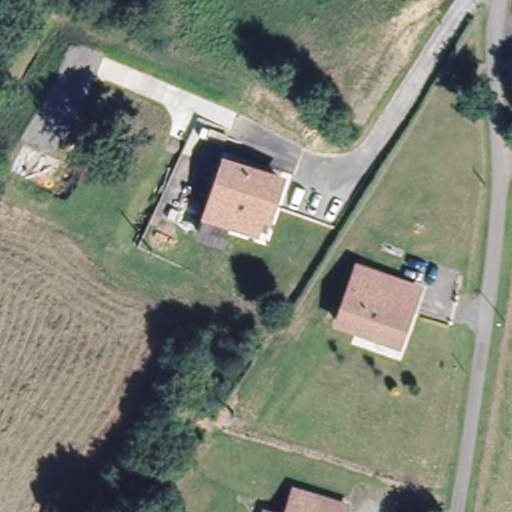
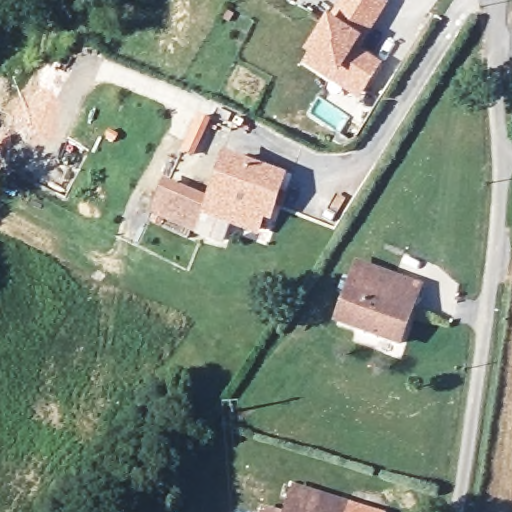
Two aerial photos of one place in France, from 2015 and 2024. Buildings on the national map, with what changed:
new [(311,62),(316,54),(313,51),(322,37),(331,23),(335,24),(350,0),(382,0),(388,4),(370,32),(358,51),(369,58),(381,65),(379,68),(368,86),(362,94),(336,78),(311,62)]
unchanged [(207,207),(223,156),(277,174),(264,213),(257,210),(252,227),(229,219),(224,218),(219,234),(200,228),(207,207)]
new [(158,188),(207,207),(200,228),(219,234),(224,218),(229,219),(221,246),(195,238),(197,233),(148,215),(158,188)]
unchanged [(342,314),(361,259),(398,272),(423,280),(415,303),(404,335),(342,314)]
unchanged [(297,483),(325,494),(350,504),(347,512),(287,512),(297,483)]
unchanged [(268,506),(283,512),(266,512),(268,506)]

